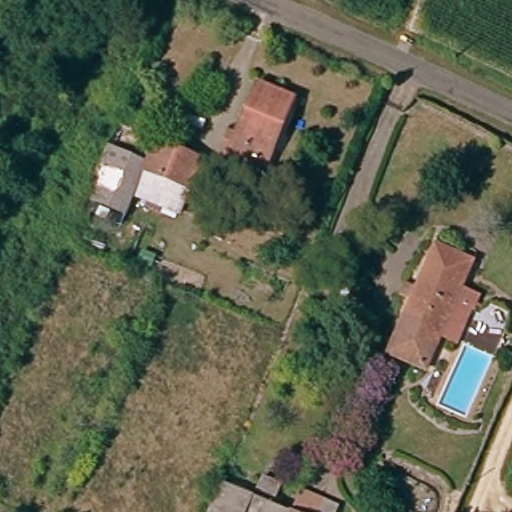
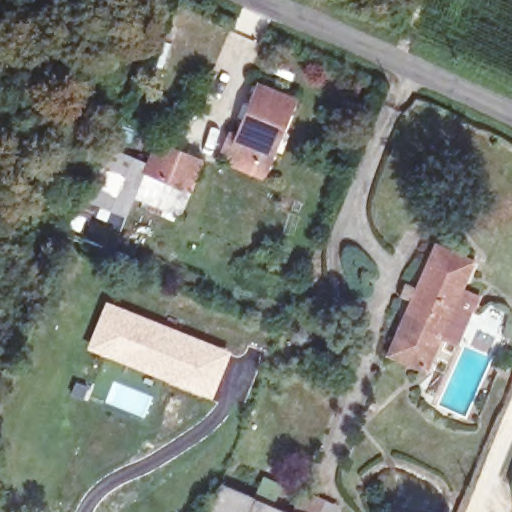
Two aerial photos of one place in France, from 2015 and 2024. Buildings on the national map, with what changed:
unchanged [(253,170),(214,153),(222,135),(235,140),(256,93),(294,109),(271,160),(264,174),(253,170)]
unchanged [(161,142),(200,159),(177,218),(136,200),(161,142)]
unchanged [(137,156),(117,208),(96,198),(116,146),(137,156)]
unchanged [(470,264),(423,369),(386,356),(432,248),(470,264)]
new [(227,352),(211,393),(93,345),(109,305),(227,352)]
unchanged [(290,512),(213,512),(224,483),(290,510),(290,512)]
unchanged [(290,510),(295,512),(290,512),(290,510)]

